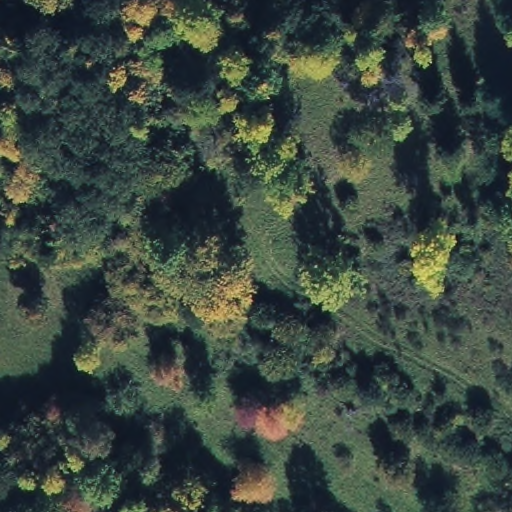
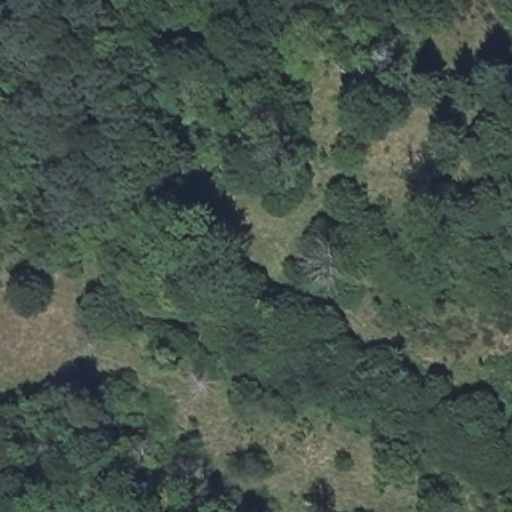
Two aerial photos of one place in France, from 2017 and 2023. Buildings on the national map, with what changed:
[]

